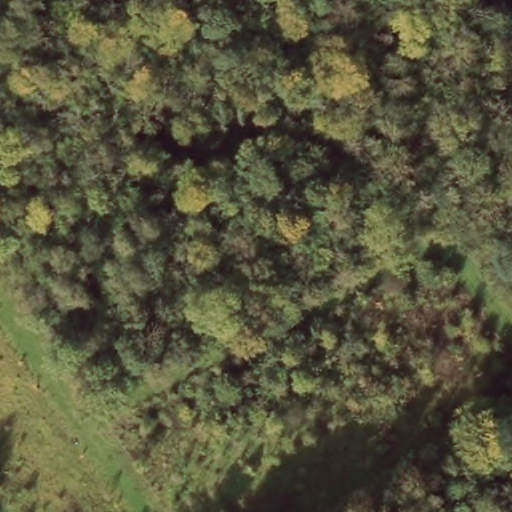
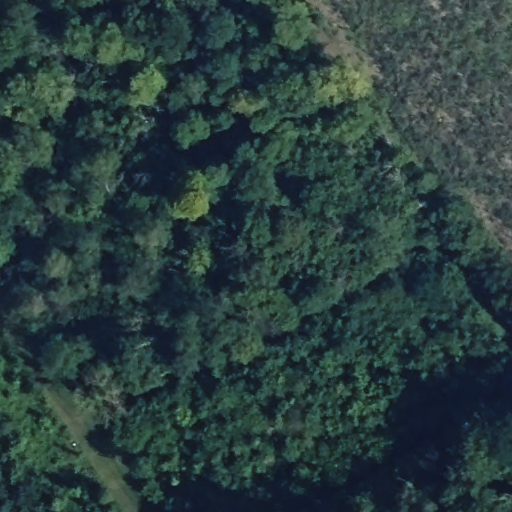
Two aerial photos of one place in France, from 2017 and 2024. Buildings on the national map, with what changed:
[]

